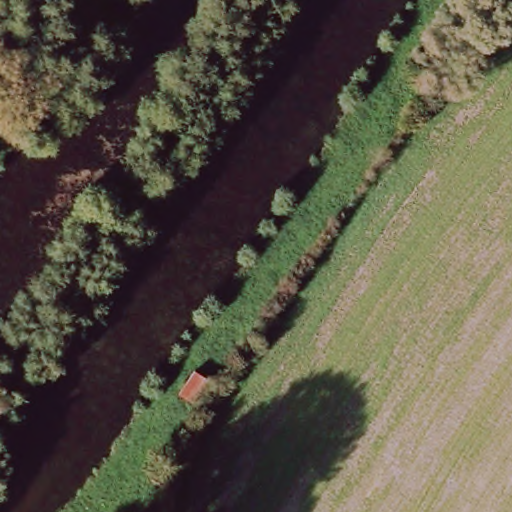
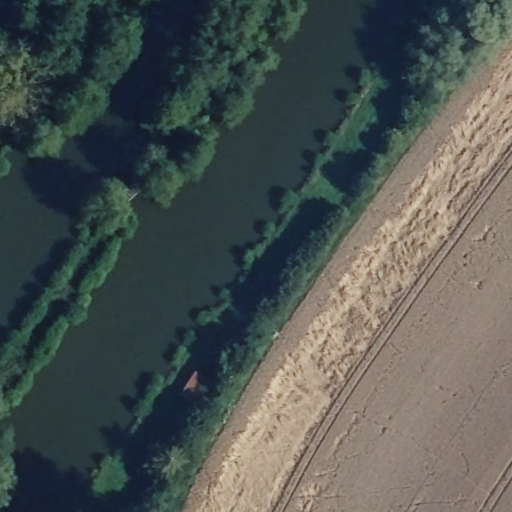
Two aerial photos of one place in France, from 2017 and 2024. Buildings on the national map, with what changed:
unchanged [(190,373),(205,382),(193,406),(176,398),(190,373)]

